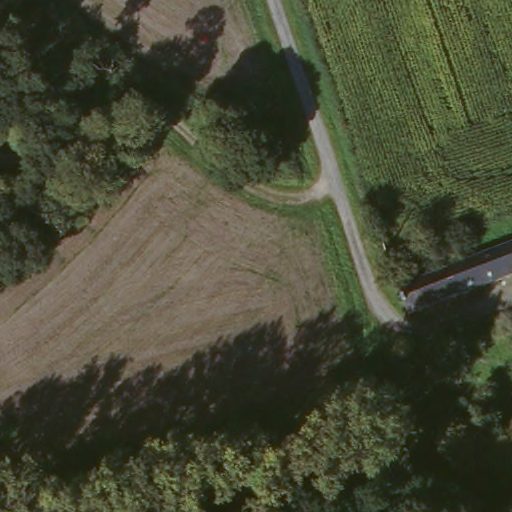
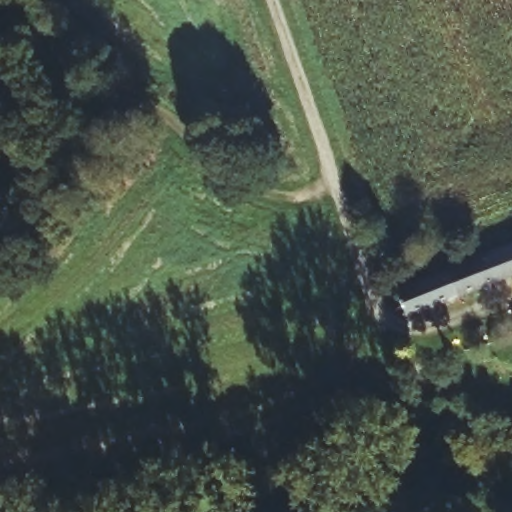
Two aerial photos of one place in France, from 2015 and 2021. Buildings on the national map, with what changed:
unchanged [(512,227),(512,240),(511,237),(507,229),(512,227)]
unchanged [(397,296),(512,253),(512,280),(401,324),(392,298),(397,296)]
unchanged [(385,371),(383,355),(397,352),(400,367),(385,371)]

